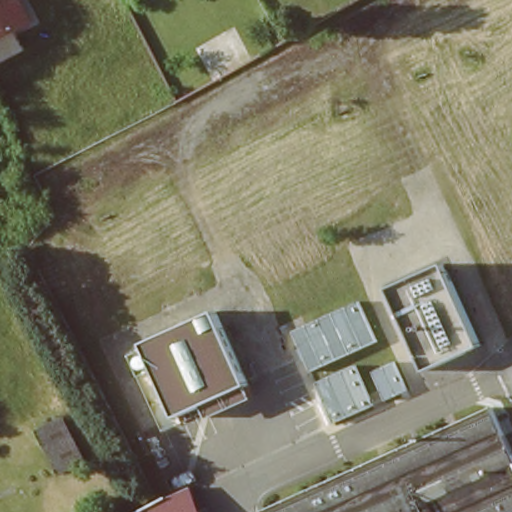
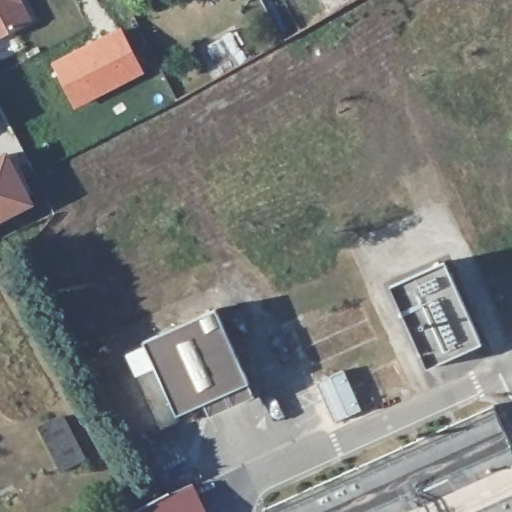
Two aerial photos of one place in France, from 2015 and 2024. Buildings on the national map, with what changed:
unchanged [(13,33),(21,49),(0,60),(0,0),(21,0),(32,24),(13,33)]
new [(120,25),(145,73),(73,109),(49,61),(120,25)]
new [(7,154),(34,206),(0,223),(0,158),(7,154)]
unchanged [(441,260),(480,344),(435,364),(423,369),(385,286),(395,282),(441,260)]
demolished [(310,370),(290,333),(351,300),(372,341),(310,370)]
unchanged [(137,341),(210,309),(245,384),(170,416),(137,341)]
unchanged [(368,406),(330,427),(311,382),(350,366),(368,406)]
unchanged [(260,511),(308,489),(354,468),(376,458),(444,426),(462,418),(490,404),(501,429),(512,453),(512,512),(261,512),(260,511)]
unchanged [(39,424),(62,413),(83,459),(60,469),(39,424)]
unchanged [(187,484),(199,512),(126,512),(187,484)]

